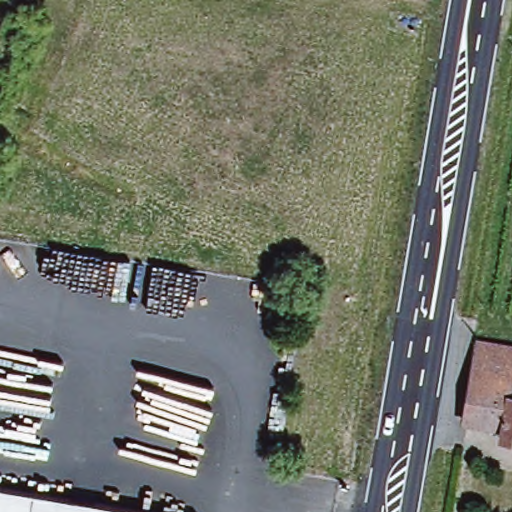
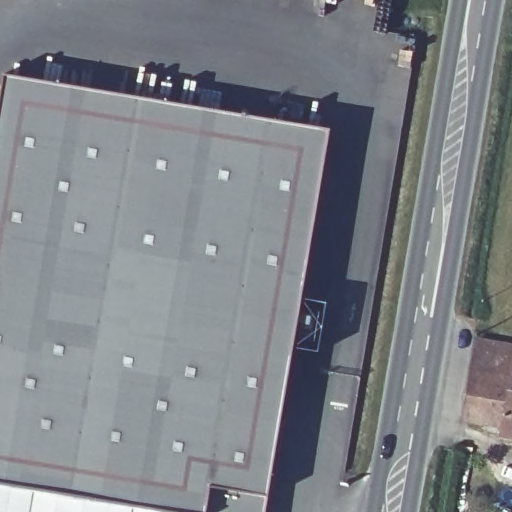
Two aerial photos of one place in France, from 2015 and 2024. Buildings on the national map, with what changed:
new [(266,512),(198,512),(0,475),(0,95),(4,74),(331,128),(266,512)]
unchanged [(468,388),(472,357),(507,362),(505,378),(512,380),(512,391),(511,397),(512,398),(512,442),(501,440),(503,432),(463,426),(468,388)]
unchanged [(198,512),(0,512),(0,475),(198,512)]

